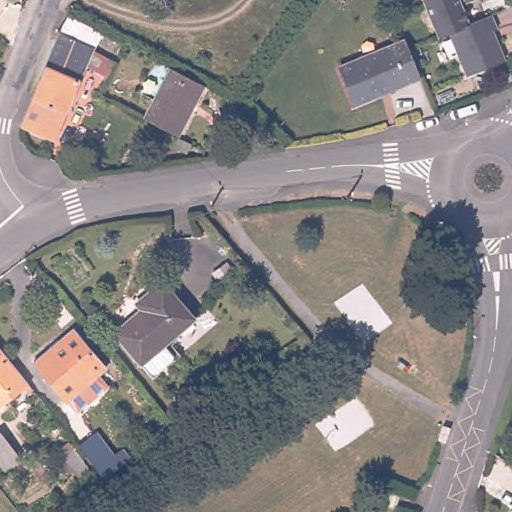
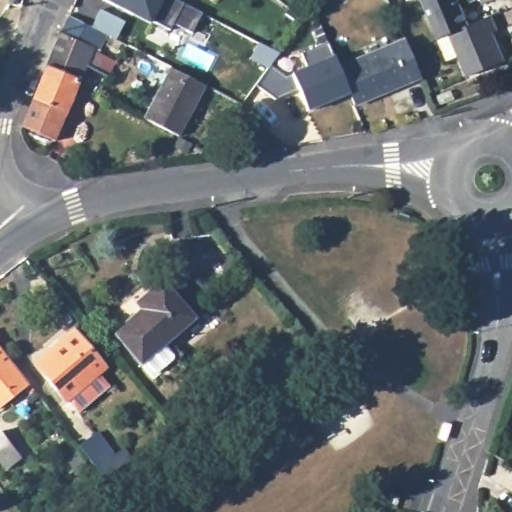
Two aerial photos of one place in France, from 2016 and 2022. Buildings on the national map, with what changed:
new [(190,34),(171,24),(167,31),(153,22),(151,25),(103,1),(103,0),(174,0),(200,14),(190,34)]
unchanged [(423,0),(479,0),(468,5),(466,3),(462,5),(472,27),(494,18),(500,31),(490,35),(494,45),(499,43),(507,62),(469,78),(452,36),(440,40),(427,8),(423,0)]
unchanged [(54,142),(21,128),(61,34),(69,16),(100,33),(93,51),(54,142)]
unchanged [(405,42),(416,68),(421,78),(354,106),(339,69),(405,42)]
new [(308,112),(298,90),(276,99),(260,87),(274,68),(284,76),(305,68),(300,55),(328,44),(334,57),(339,69),(350,95),(308,112)]
unchanged [(170,69),(204,87),(179,138),(145,120),(170,69)]
unchanged [(139,311),(135,305),(160,283),(192,320),(139,365),(113,334),(139,311)]
unchanged [(75,336),(106,373),(70,405),(39,368),(75,336)]
unchanged [(0,405),(0,349),(27,385),(0,405)]
unchanged [(3,471),(0,466),(0,434),(19,459),(3,471)]
unchanged [(94,434),(119,466),(101,479),(76,447),(94,434)]
unchanged [(389,495),(399,498),(394,512),(384,508),(389,495)]

